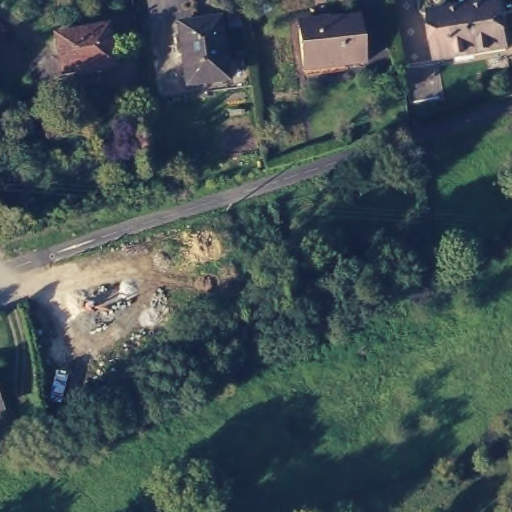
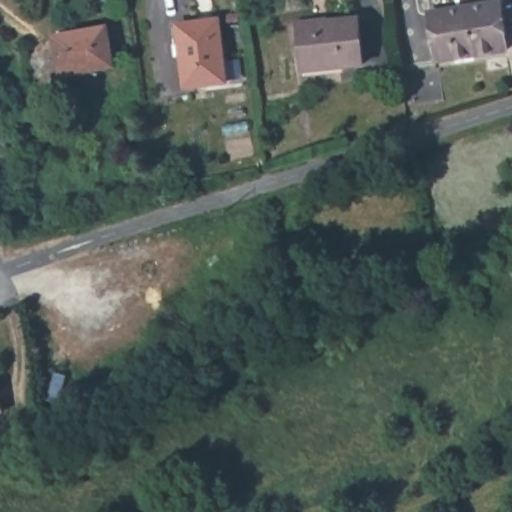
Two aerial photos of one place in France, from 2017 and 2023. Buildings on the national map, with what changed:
unchanged [(502,0),(508,45),(438,58),(432,10),(499,0),(502,0)]
unchanged [(183,21),(222,18),(226,78),(188,81),(183,21)]
unchanged [(360,19),(367,64),(305,76),(298,29),(360,19)]
unchanged [(55,59),(63,57),(60,36),(109,26),(117,66),(60,79),(55,59)]
unchanged [(0,416),(0,409),(2,415),(0,416)]

